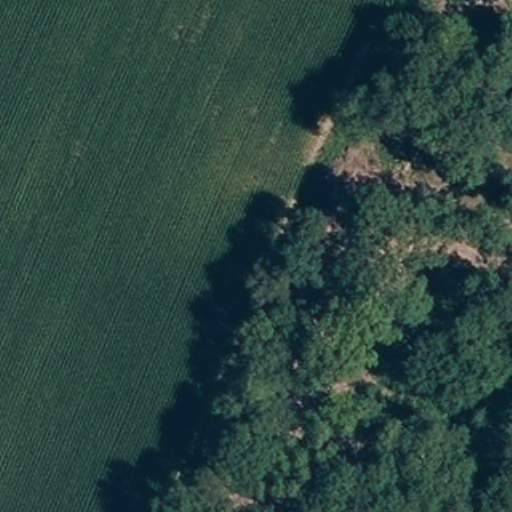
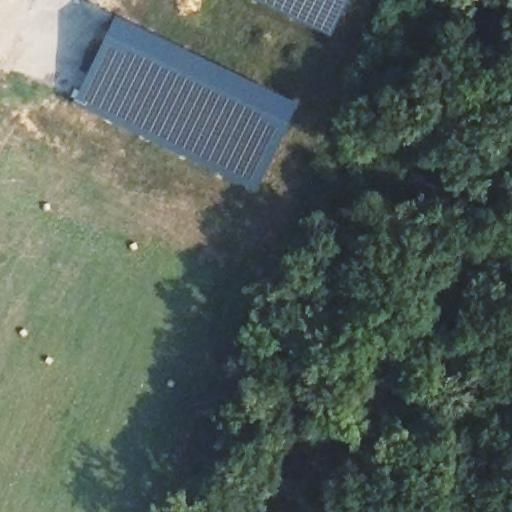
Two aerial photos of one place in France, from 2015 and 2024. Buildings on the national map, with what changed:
new [(253,0),(348,0),(330,37),(253,0)]
new [(114,15),(298,102),(255,191),(72,104),(114,15)]

